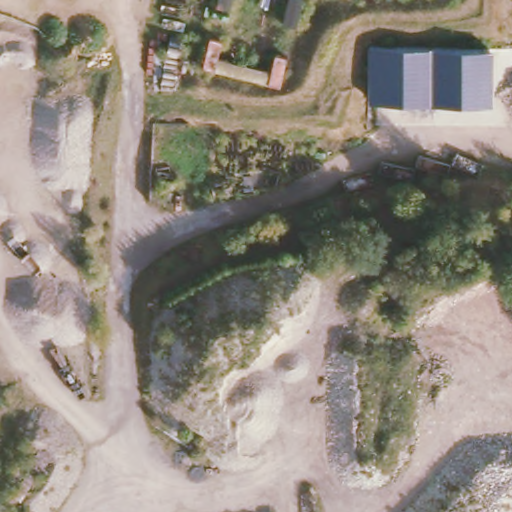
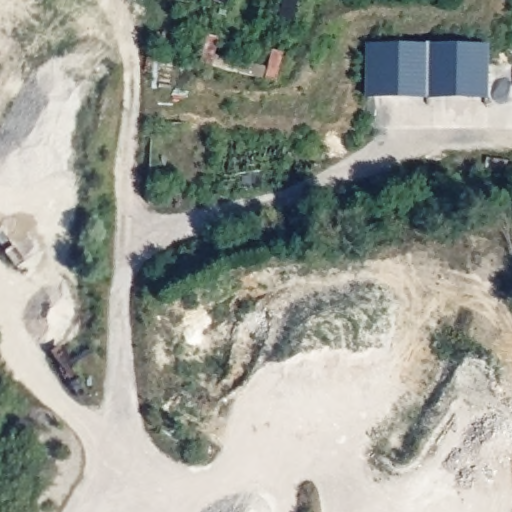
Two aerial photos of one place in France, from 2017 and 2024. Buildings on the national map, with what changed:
unchanged [(367,100),(367,45),(491,48),(490,103),(367,100)]

